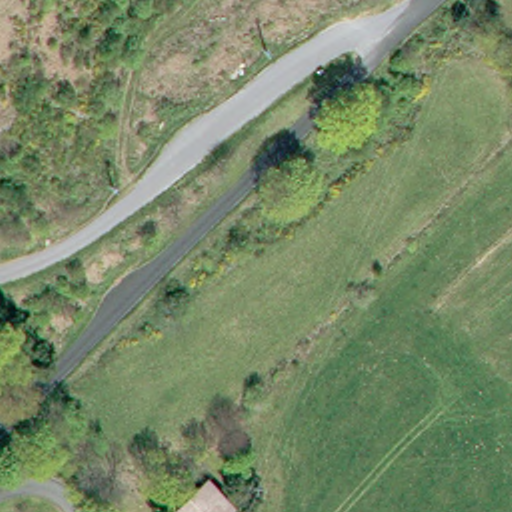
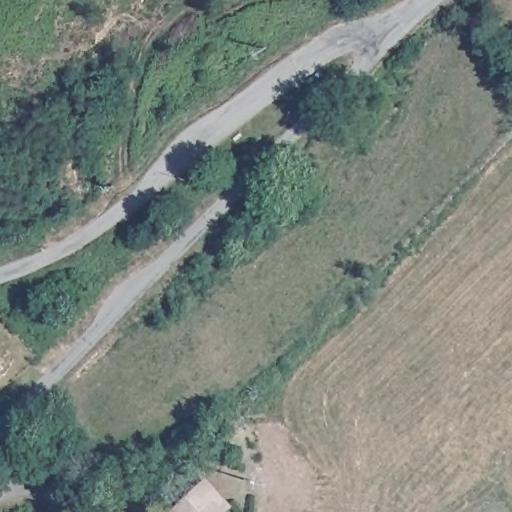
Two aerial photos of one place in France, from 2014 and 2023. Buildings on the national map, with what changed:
unchanged [(210,512),(174,512),(170,509),(201,478),(223,499),(210,512)]

